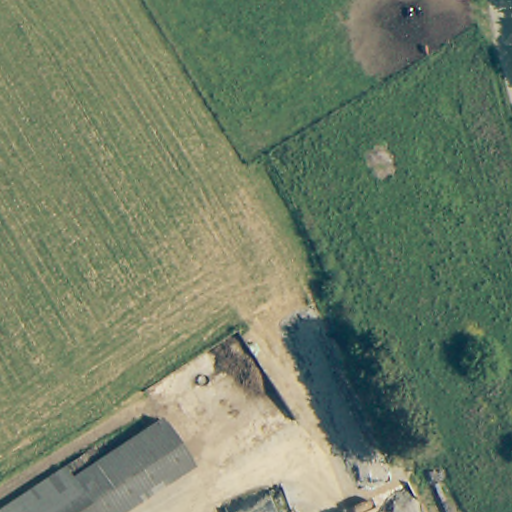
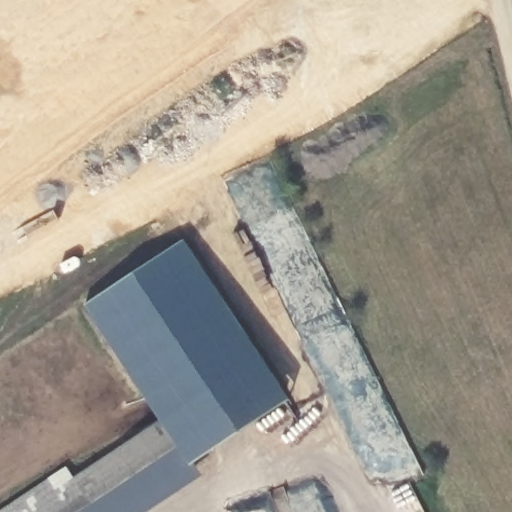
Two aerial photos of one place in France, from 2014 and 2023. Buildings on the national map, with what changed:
new [(166,426),(83,306),(183,240),(290,399),(187,461),(166,426)]
unchanged [(125,512),(0,512),(0,510),(66,469),(74,482),(166,426),(192,471),(125,512)]

